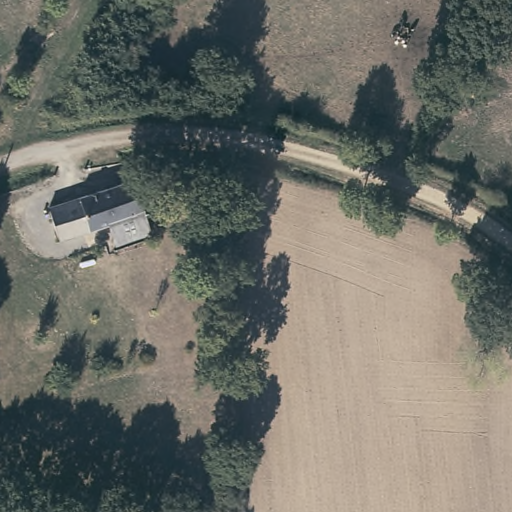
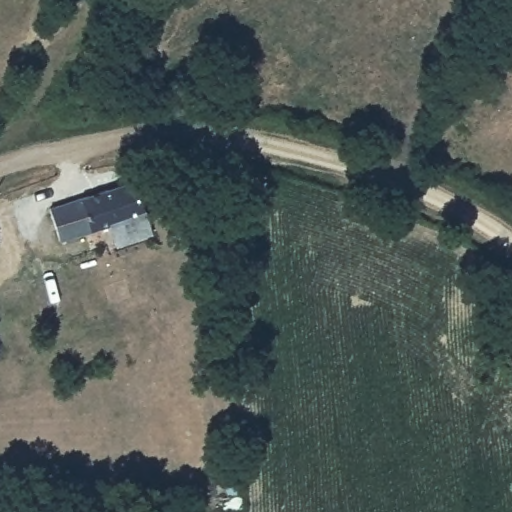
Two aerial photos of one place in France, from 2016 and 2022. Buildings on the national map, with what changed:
unchanged [(116,242),(110,223),(60,239),(50,207),(58,204),(67,201),(116,185),(135,179),(146,212),(152,231),(116,242)]

